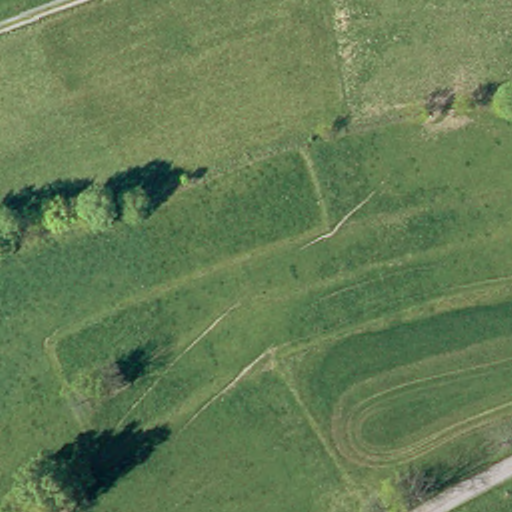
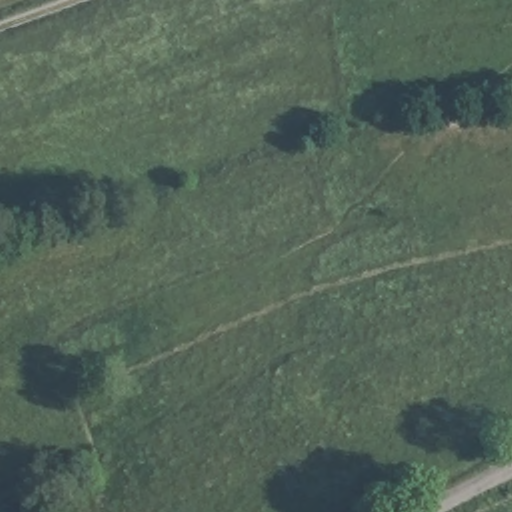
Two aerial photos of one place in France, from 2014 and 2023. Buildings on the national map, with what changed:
[]

